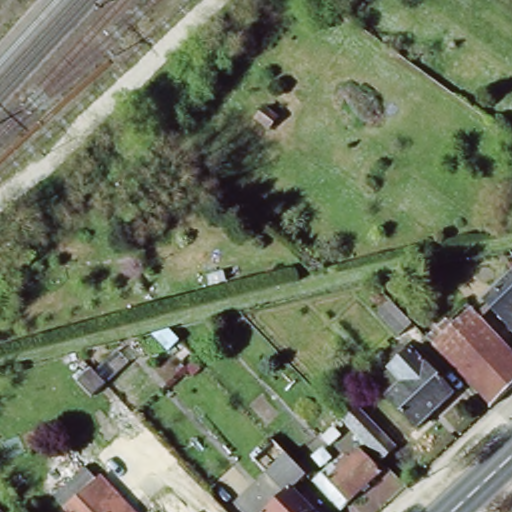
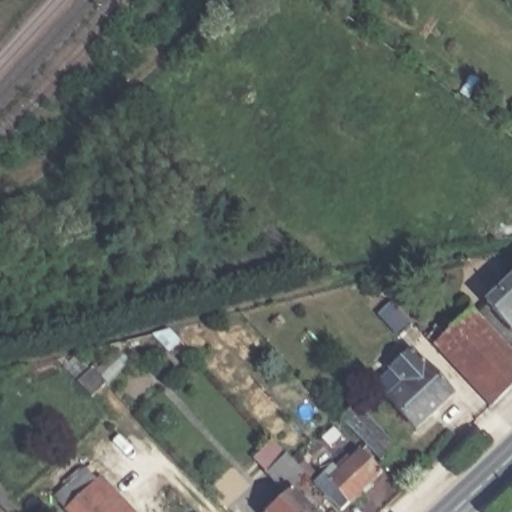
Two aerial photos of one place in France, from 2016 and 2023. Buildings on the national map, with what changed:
unchanged [(265,128),(255,119),(262,110),(272,119),(265,128)]
unchanged [(512,227),(512,237),(492,240),(482,231),(512,227)]
unchanged [(493,298),(512,278),(512,318),(493,298)]
unchanged [(476,312),(512,349),(512,394),(497,409),(439,347),(476,312)]
unchanged [(418,431),(388,399),(402,386),(389,374),(412,351),(454,397),(418,431)]
unchanged [(100,388),(86,401),(72,387),(86,372),(100,388)]
unchanged [(400,450),(385,465),(342,420),(357,406),(400,450)]
unchanged [(341,472),(339,470),(350,458),(353,461),(361,454),(381,476),(342,512),(341,512),(315,484),(325,475),(331,481),(341,472)]
unchanged [(290,458),(292,461),(300,468),(306,462),(316,473),(310,479),(295,492),(305,502),(308,499),(320,512),(274,512),(291,497),(270,476),(290,458)]
unchanged [(86,468),(97,479),(100,476),(121,501),(116,505),(122,512),(70,512),(56,496),(86,468)]

